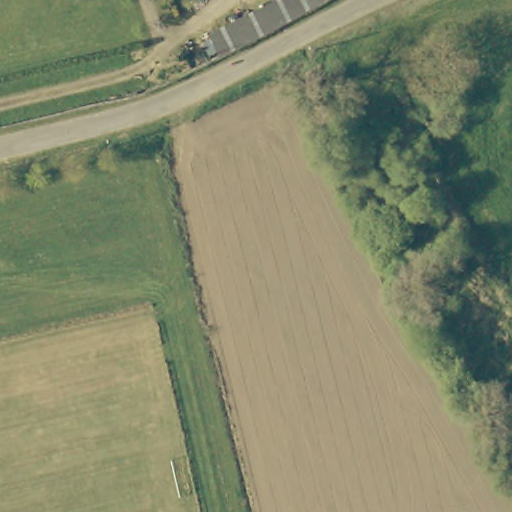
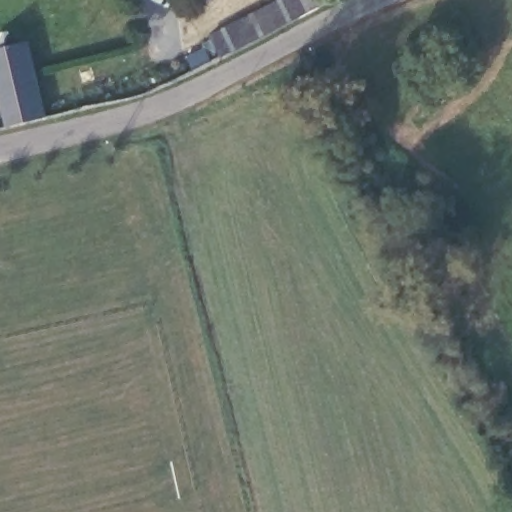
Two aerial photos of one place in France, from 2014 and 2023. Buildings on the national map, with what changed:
unchanged [(269,0),(332,0),(222,59),(212,32),(269,0)]
new [(6,127),(0,100),(0,46),(29,39),(46,117),(6,127)]

